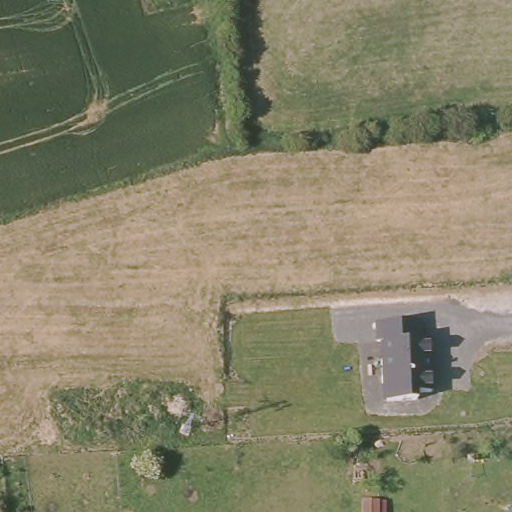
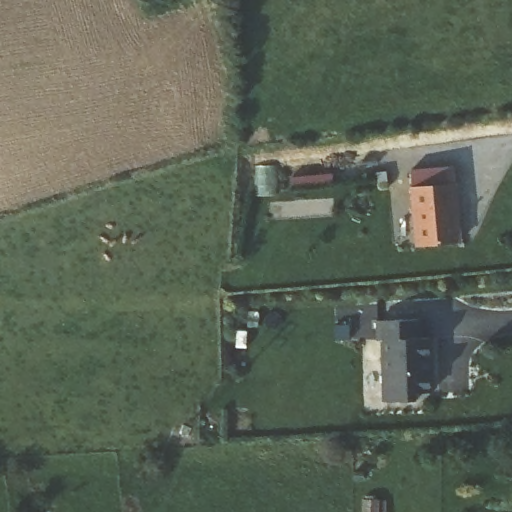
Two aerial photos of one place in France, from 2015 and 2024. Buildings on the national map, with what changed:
new [(455,166),(461,243),(438,249),(416,249),(412,167),(455,166)]
unchanged [(421,316),(429,393),(392,396),(387,319),(421,316)]

